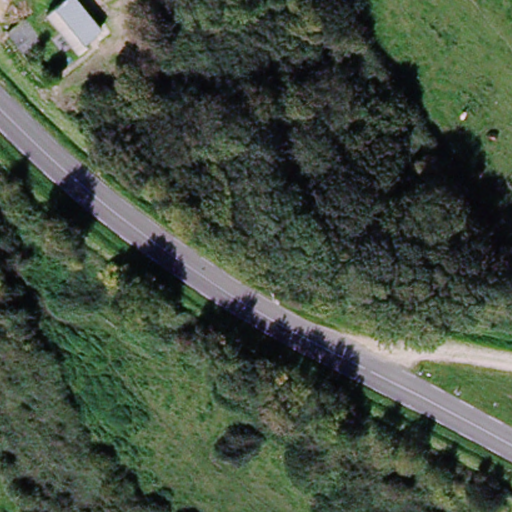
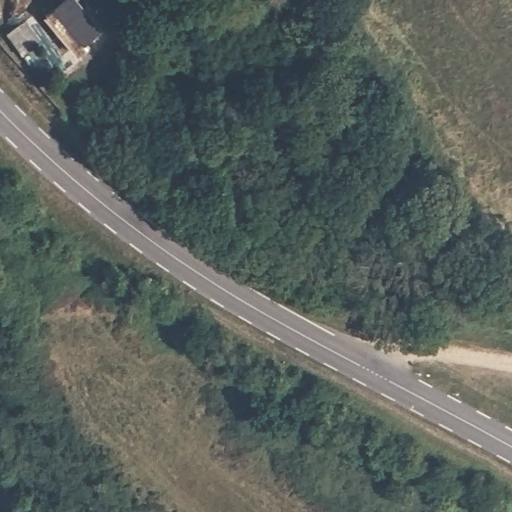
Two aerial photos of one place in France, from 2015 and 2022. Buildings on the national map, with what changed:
unchanged [(63,6),(81,33),(67,41),(62,33),(54,38),(55,39),(42,46),(30,29),(63,6)]

